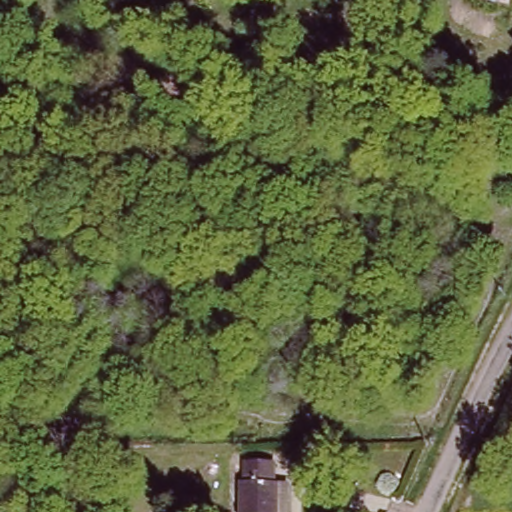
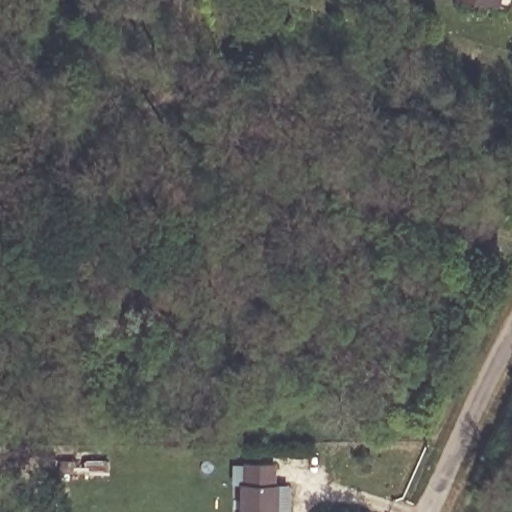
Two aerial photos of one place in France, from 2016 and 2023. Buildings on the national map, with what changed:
unchanged [(476,0),(498,0),(497,5),(476,0)]
unchanged [(243,486),(244,465),(272,465),(272,512),(238,512),(238,486),(243,486)]

